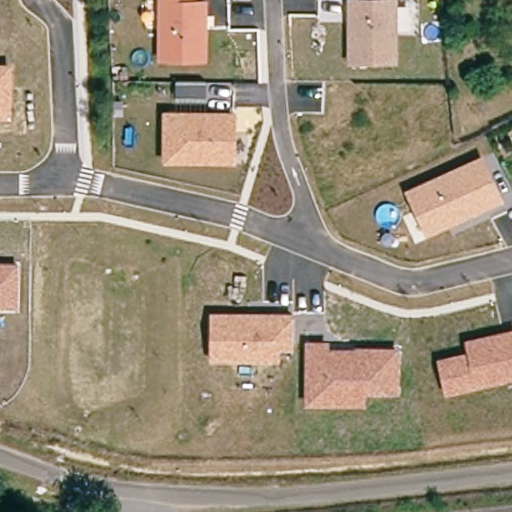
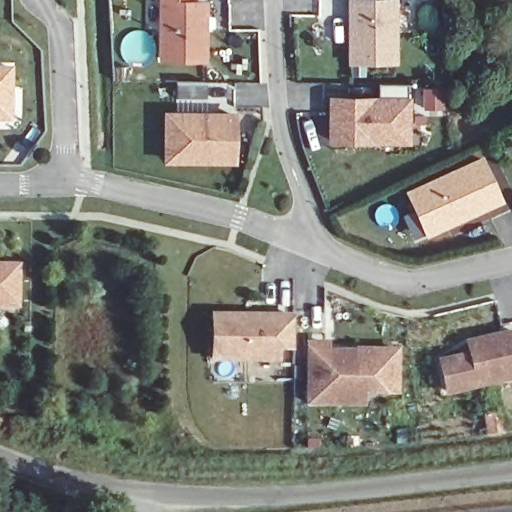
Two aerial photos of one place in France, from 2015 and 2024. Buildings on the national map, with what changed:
unchanged [(157,0),(207,0),(207,63),(157,61),(157,0)]
unchanged [(398,64),(347,64),(347,0),(397,0),(398,64)]
unchanged [(12,118),(0,118),(0,64),(12,64),(12,118)]
new [(379,95),(379,83),(407,83),(406,95),(411,95),(411,144),(328,143),(328,95),(379,95)]
unchanged [(163,112),(235,113),(235,165),(162,163),(163,112)]
unchanged [(480,156),(502,202),(425,238),(405,190),(480,156)]
unchanged [(17,308),(0,307),(0,264),(19,264),(17,308)]
unchanged [(210,314),(295,315),(293,352),(280,352),(280,364),(210,363),(210,314)]
unchanged [(512,330),(512,382),(445,397),(435,359),(466,352),(463,340),(512,330)]
unchanged [(330,348),(398,348),(399,395),(365,396),(365,408),(304,408),(305,341),(330,341),(330,348)]

